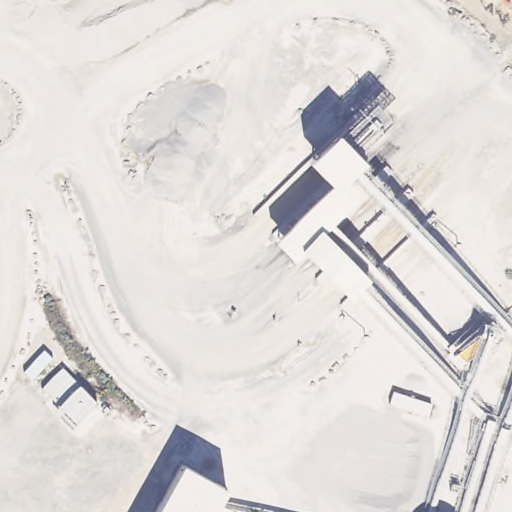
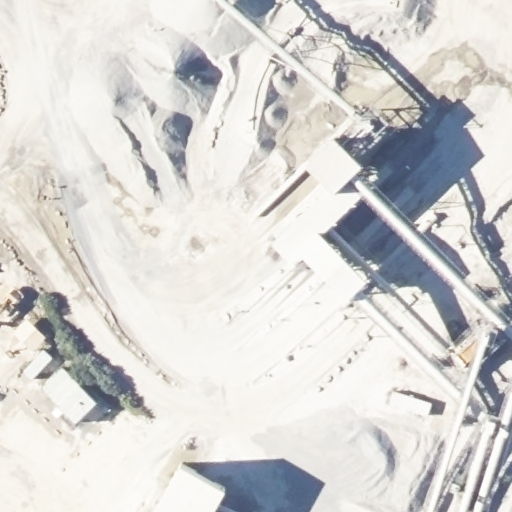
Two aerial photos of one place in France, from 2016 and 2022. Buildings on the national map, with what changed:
unchanged [(332,192),(307,163),(336,135),(362,166),(343,184),(365,192),(321,234),(368,280),(349,300),(343,297),(301,257),(295,263),(273,241),(332,192)]
unchanged [(212,512),(151,512),(179,461),(225,486),(212,512)]

